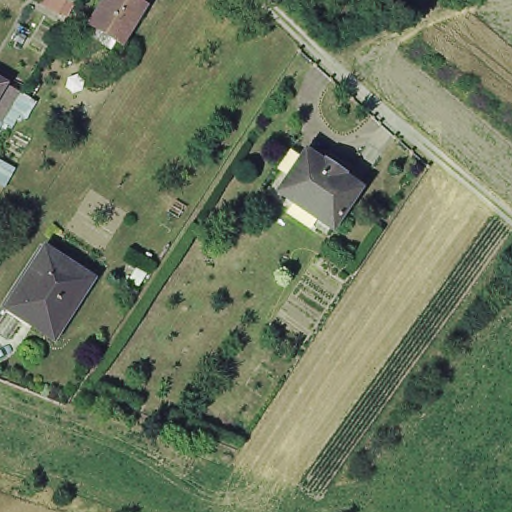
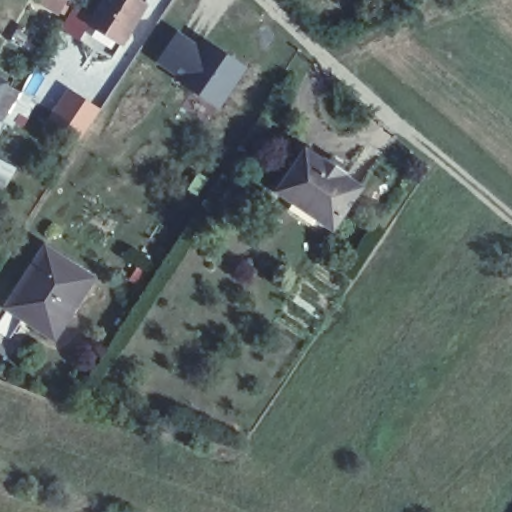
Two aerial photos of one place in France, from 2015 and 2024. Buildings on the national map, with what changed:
unchanged [(66,0),(73,0),(71,3),(66,0)]
unchanged [(126,42),(93,22),(106,0),(132,0),(147,9),(126,42)]
new [(206,40),(247,69),(219,110),(179,82),(181,80),(156,62),(177,30),(201,46),(206,40)]
unchanged [(17,85),(20,87),(1,117),(0,116),(0,74),(5,77),(17,85)]
new [(70,89),(101,112),(77,145),(48,119),(70,89)]
unchanged [(357,191),(329,233),(324,230),(274,195),(302,153),(320,165),(322,163),(342,177),(340,179),(352,187),(357,191)]
unchanged [(1,310),(8,300),(41,249),(51,255),(82,275),(91,281),(51,342),(42,337),(27,327),(12,317),(1,310)]

